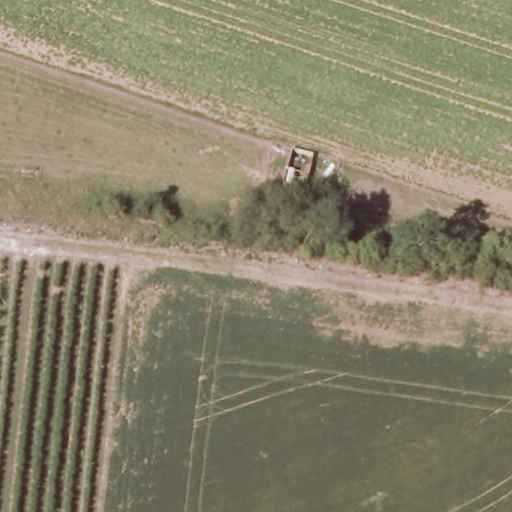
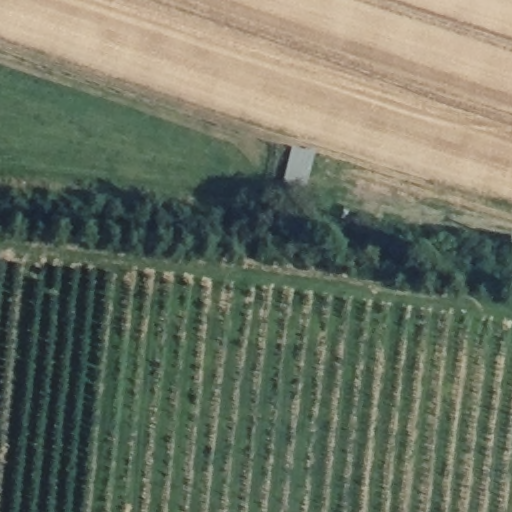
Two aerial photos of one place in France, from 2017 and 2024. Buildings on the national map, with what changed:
unchanged [(313,160),(305,196),(283,190),(292,154),(313,160)]

